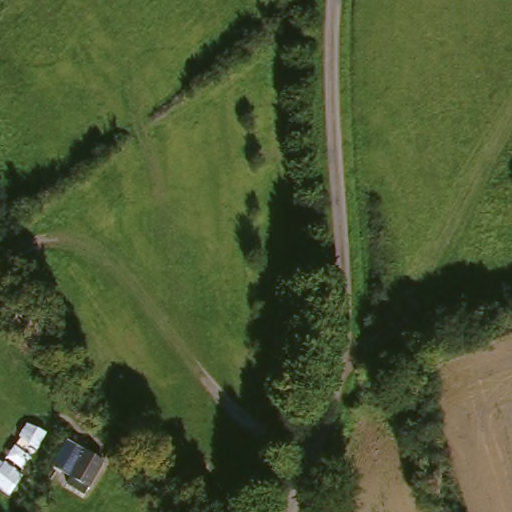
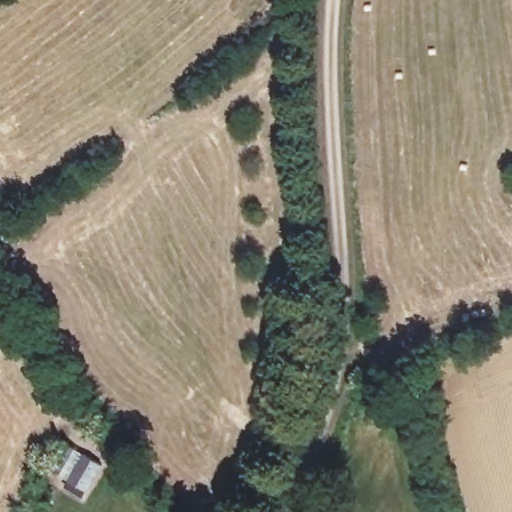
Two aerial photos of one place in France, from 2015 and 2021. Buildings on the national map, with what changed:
unchanged [(80,452),(98,464),(79,492),(62,481),(80,452)]

